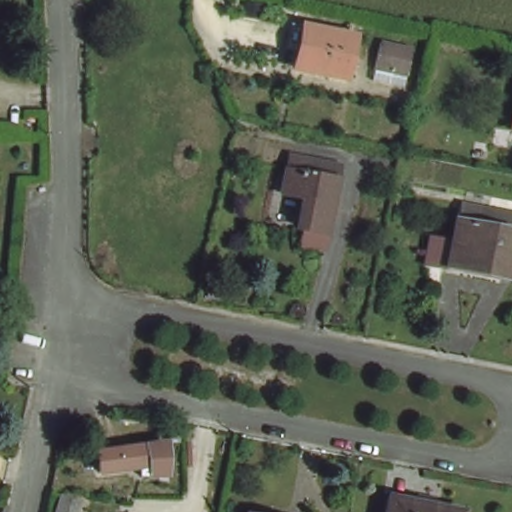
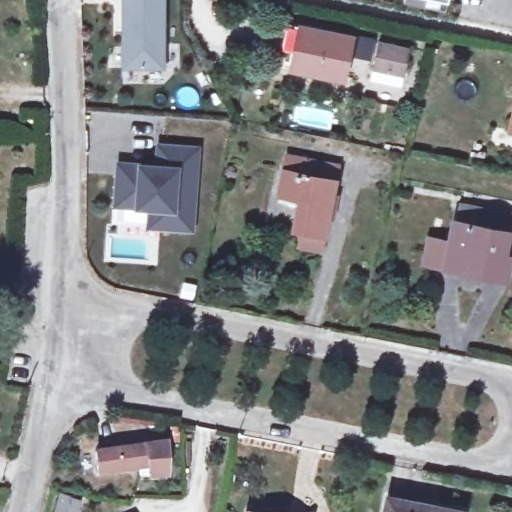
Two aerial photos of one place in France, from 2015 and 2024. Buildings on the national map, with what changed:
new [(159,0),(159,70),(119,70),(119,39),(119,23),(119,0),(159,0)]
unchanged [(349,40),(340,84),(287,73),(298,29),(349,40)]
unchanged [(406,48),(399,76),(369,69),(376,41),(406,48)]
unchanged [(512,96),(512,127),(506,125),(512,96)]
new [(115,205),(118,169),(156,172),(158,151),(191,153),(186,229),(166,227),(148,226),(149,207),(115,205)]
unchanged [(299,231),(308,199),(279,192),(284,166),(299,171),(302,157),(340,166),(325,236),(299,231)]
unchanged [(465,257),(465,263),(447,258),(458,207),(512,220),(512,222),(503,266),(465,257)]
unchanged [(166,442),(166,482),(157,482),(157,474),(138,474),(138,467),(98,471),(96,450),(166,442)]
unchanged [(58,498),(79,505),(77,512),(54,512),(58,498)]
unchanged [(439,512),(385,512),(388,501),(439,512)]

